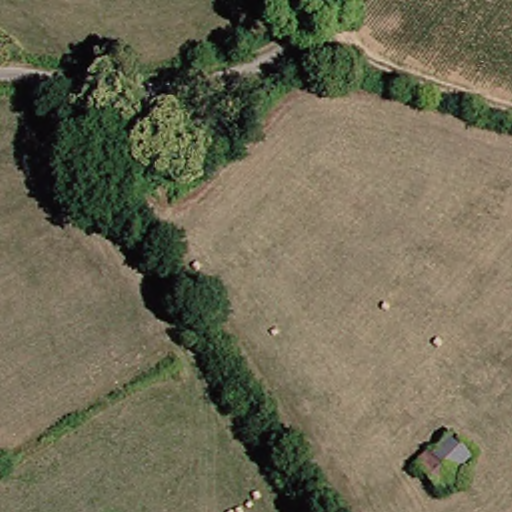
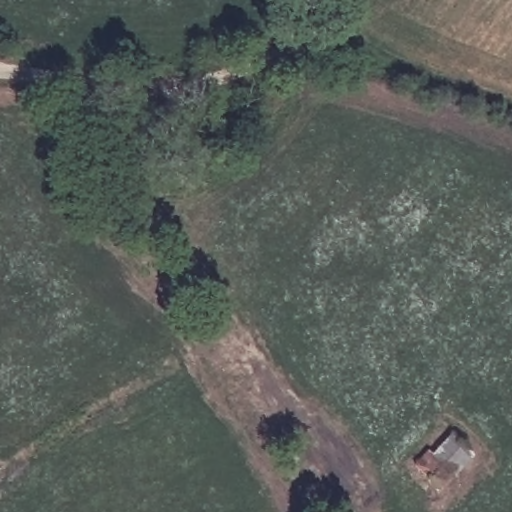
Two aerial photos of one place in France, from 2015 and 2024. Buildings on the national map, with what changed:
unchanged [(439,493),(411,468),(429,450),(433,453),(447,437),(469,458),(439,493)]

